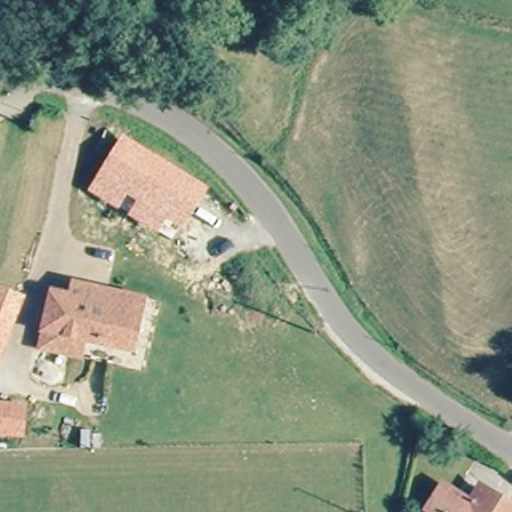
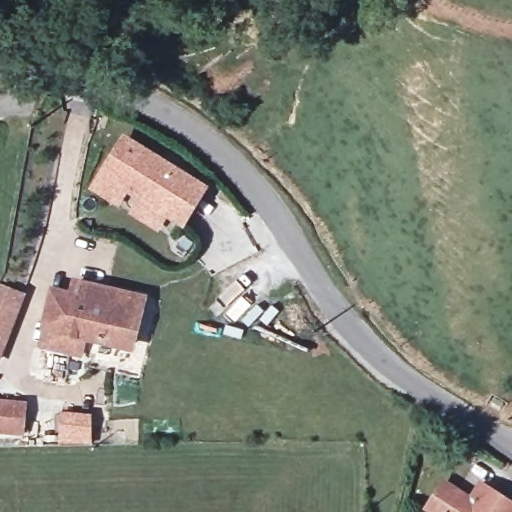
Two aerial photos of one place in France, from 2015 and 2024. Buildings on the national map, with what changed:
unchanged [(210,186),(183,230),(165,219),(157,231),(87,187),(122,133),(210,186)]
unchanged [(92,336),(88,350),(49,338),(65,290),(80,294),(85,280),(151,299),(146,315),(136,351),(124,346),(92,336)]
unchanged [(0,356),(0,282),(23,292),(0,356)]
unchanged [(0,430),(0,403),(21,403),(20,431),(0,430)]
new [(91,412),(94,448),(58,447),(59,410),(91,412)]
unchanged [(450,498),(460,505),(471,486),(512,510),(512,511),(512,512),(441,512),(450,498)]

